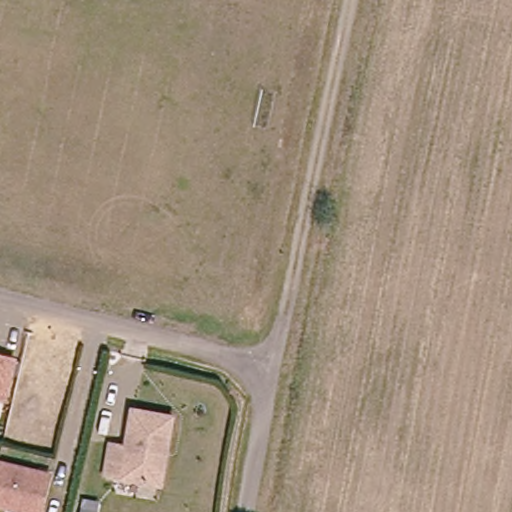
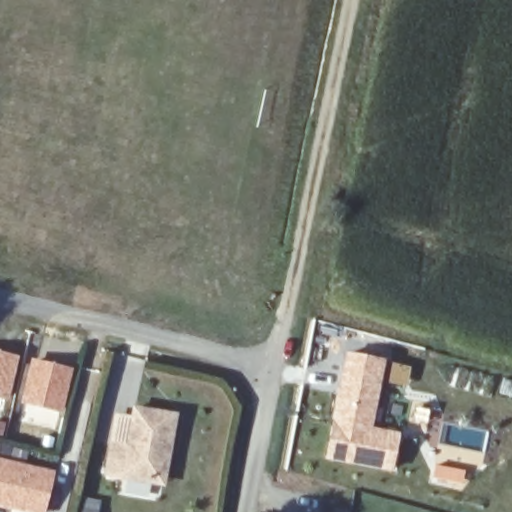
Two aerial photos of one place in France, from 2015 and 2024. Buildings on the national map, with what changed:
unchanged [(0,400),(0,353),(19,358),(7,402),(0,400)]
new [(385,360),(372,429),(400,434),(393,473),(325,460),(345,353),(385,360)]
new [(32,358),(74,368),(57,430),(22,422),(25,406),(21,405),(32,358)]
unchanged [(164,478),(112,470),(117,439),(133,442),(139,404),(179,411),(173,446),(168,479),(164,478)]
unchanged [(57,471),(47,511),(0,500),(0,458),(57,471)]
unchanged [(102,512),(87,512),(89,504),(103,506),(102,512)]

